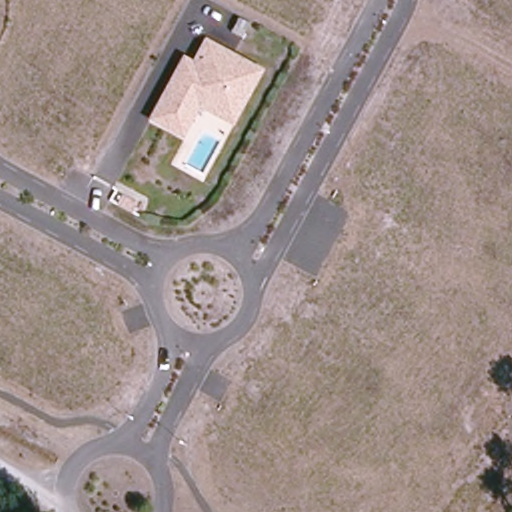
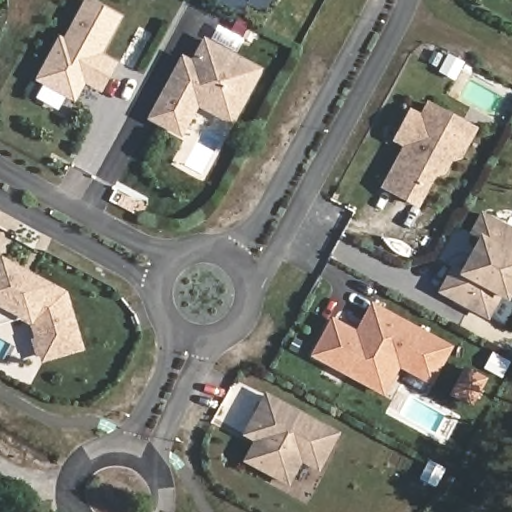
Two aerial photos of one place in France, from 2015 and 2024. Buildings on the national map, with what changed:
new [(102,53),(117,61),(101,93),(84,84),(74,101),(35,80),(58,35),(63,38),(84,0),(91,0),(121,16),(102,53)]
unchanged [(231,122),(196,106),(179,138),(148,118),(181,56),(190,59),(203,40),(263,66),(231,122)]
new [(461,159),(452,162),(445,175),(436,177),(420,207),(380,187),(402,146),(393,141),(411,108),(420,113),(426,100),(478,127),(461,159)]
new [(500,297),(488,320),(438,293),(453,263),(462,268),(478,239),(468,234),(482,210),(512,226),(512,293),(508,300),(500,297)]
new [(2,263),(4,259),(21,268),(34,276),(64,293),(80,346),(45,356),(35,320),(0,301),(0,263),(2,263)]
new [(431,385),(399,368),(385,395),(310,356),(331,316),(357,329),(372,301),(453,345),(431,385)]
new [(470,370),(488,379),(481,392),(475,403),(457,393),(464,382),(470,370)]
new [(318,472),(302,463),(289,487),(243,461),(253,441),(242,435),(265,391),(340,431),(318,472)]

